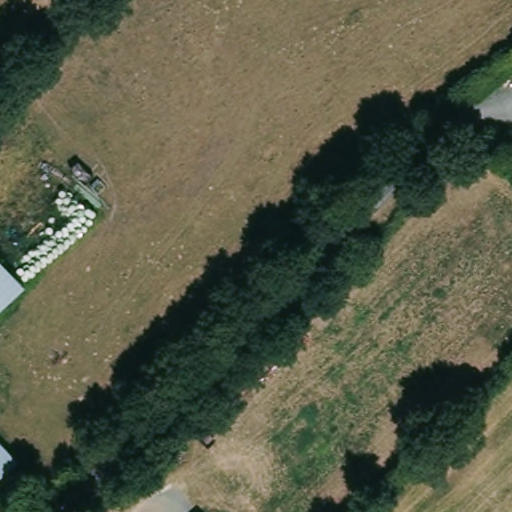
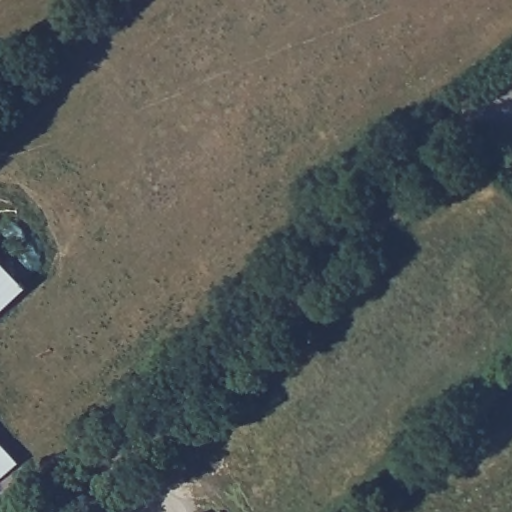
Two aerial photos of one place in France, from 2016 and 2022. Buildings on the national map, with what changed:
unchanged [(0,311),(0,251),(29,281),(0,311)]
unchanged [(0,488),(0,433),(27,461),(0,488)]
unchanged [(204,512),(198,512),(202,509),(204,512)]

